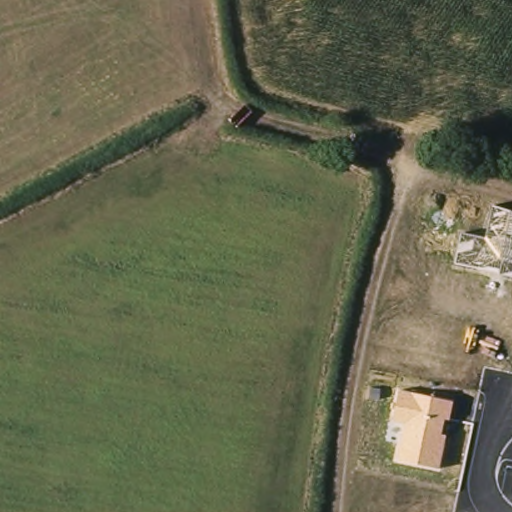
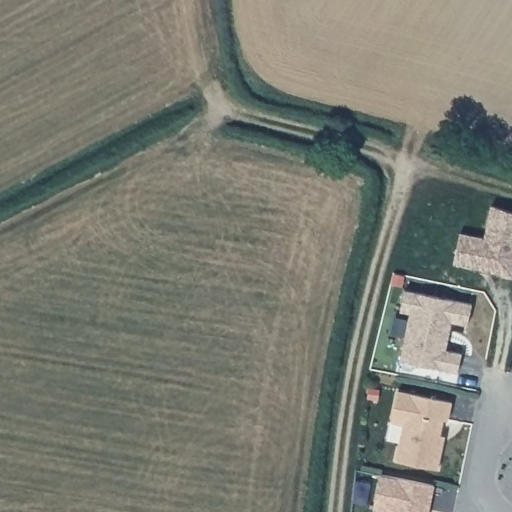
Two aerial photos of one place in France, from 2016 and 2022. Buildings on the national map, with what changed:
unchanged [(485,238),(492,205),(512,212),(512,278),(455,265),(461,232),(485,238)]
new [(450,345),(466,349),(462,368),(405,355),(415,308),(405,306),(410,285),(477,299),(472,320),(456,317),(454,326),(452,336),(450,345)]
unchanged [(402,427),(391,424),(397,390),(453,403),(450,421),(445,420),(442,437),(446,438),(439,470),(396,460),(402,427)]
new [(390,511),(374,508),(381,474),(433,485),(428,512),(389,512),(390,511)]

